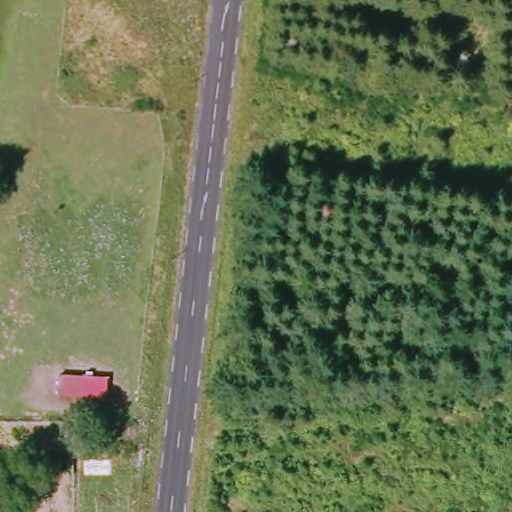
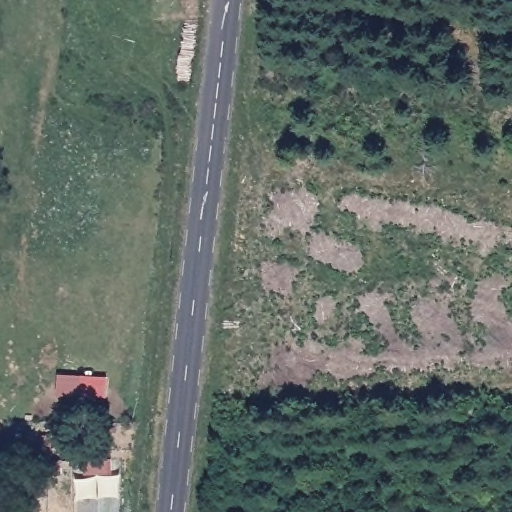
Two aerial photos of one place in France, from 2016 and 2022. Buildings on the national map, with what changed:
unchanged [(105,377),(105,397),(60,394),(60,375),(105,377)]

